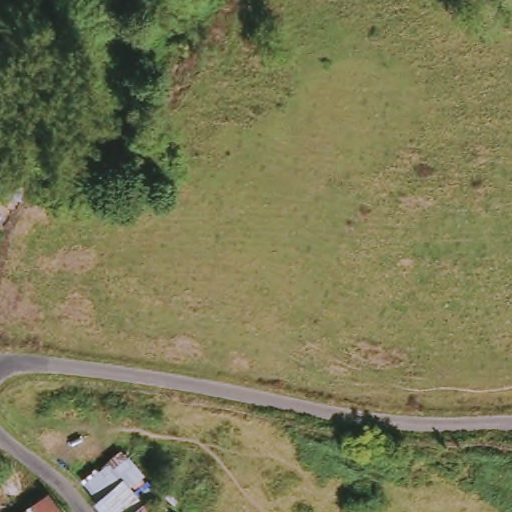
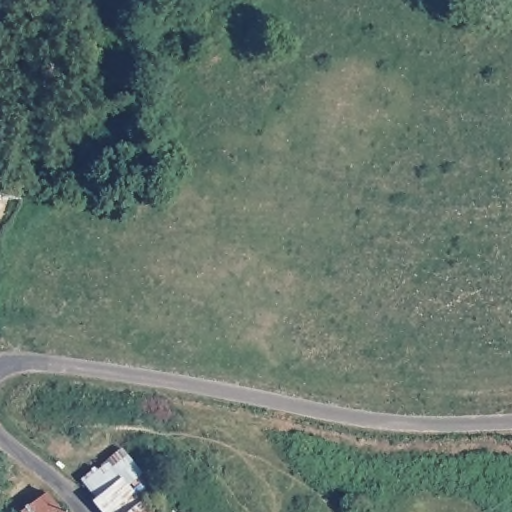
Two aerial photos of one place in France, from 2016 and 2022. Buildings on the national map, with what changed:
unchanged [(123,476),(157,508),(166,505),(171,510),(170,512),(109,512),(100,504),(123,476)]
unchanged [(25,509),(52,495),(55,497),(63,512),(26,512),(25,509)]

